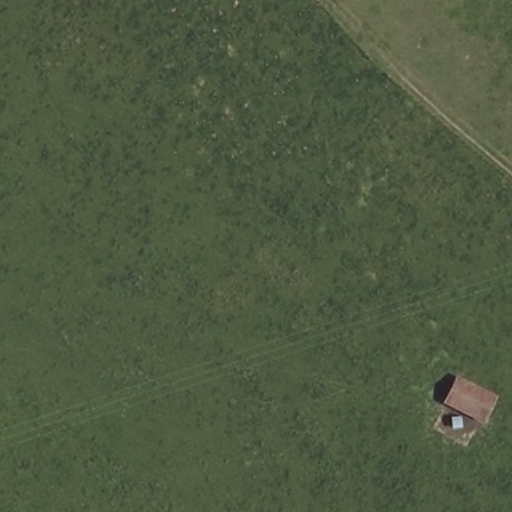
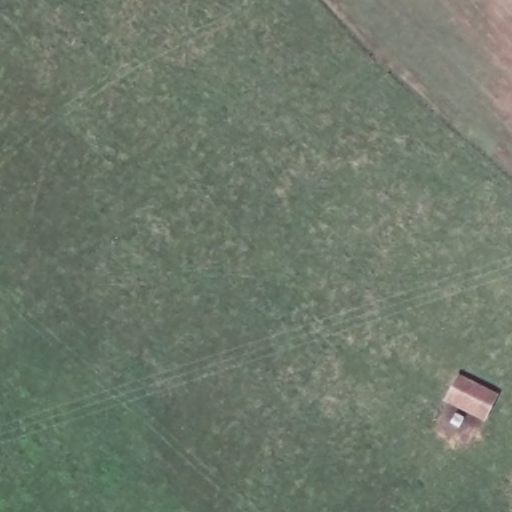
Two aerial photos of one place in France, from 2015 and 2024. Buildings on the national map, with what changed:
unchanged [(487,397),(482,419),(447,406),(456,385),(487,397)]

